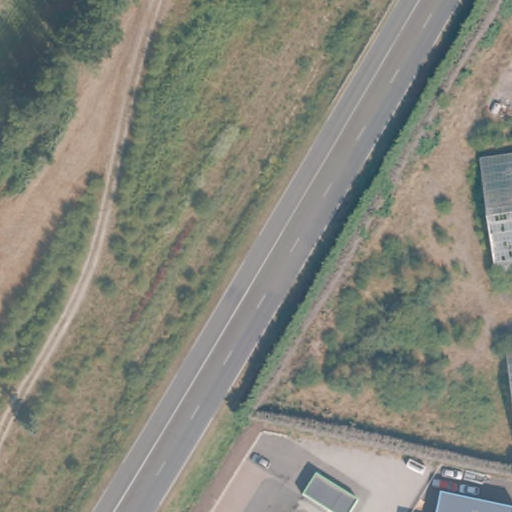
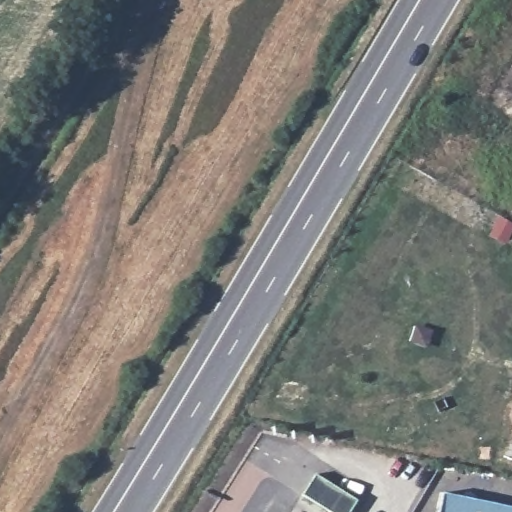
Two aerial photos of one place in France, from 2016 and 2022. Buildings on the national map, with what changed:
demolished [(480,159),(512,154),(512,274),(500,276),(480,159)]
demolished [(512,347),(512,386),(507,348),(512,347)]
unchanged [(359,501),(352,512),(325,512),(300,497),(314,474),(359,501)]
unchanged [(442,495),(512,510),(512,512),(438,512),(442,495)]

